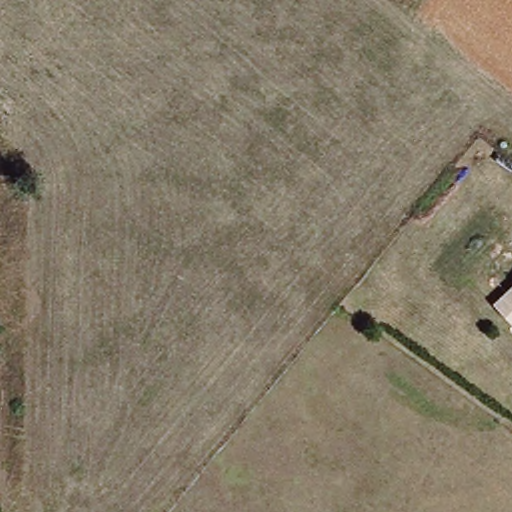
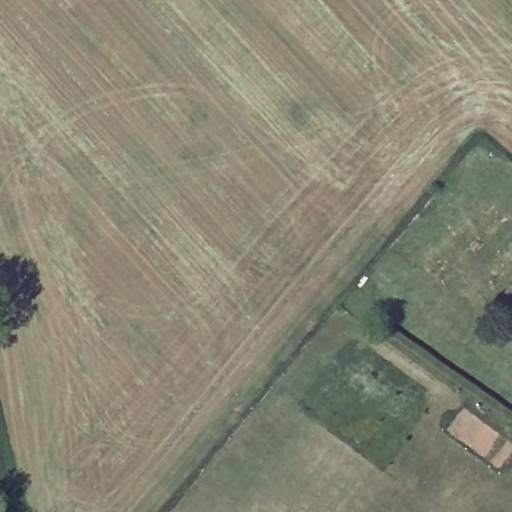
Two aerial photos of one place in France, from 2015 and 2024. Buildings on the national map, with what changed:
unchanged [(512,291),(512,326),(494,308),(512,291)]

